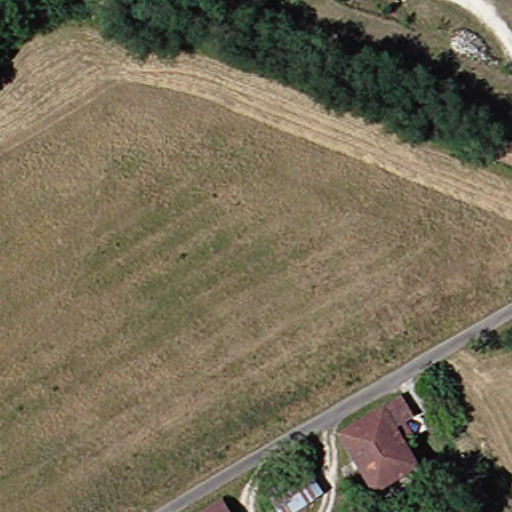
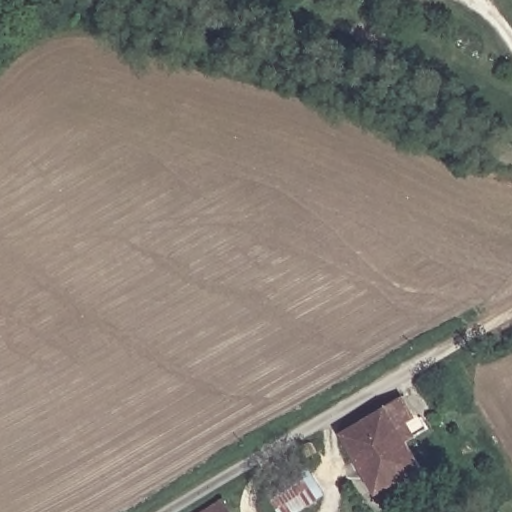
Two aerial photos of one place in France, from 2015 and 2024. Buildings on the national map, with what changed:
unchanged [(409,423),(418,439),(407,447),(418,468),(380,491),(347,435),(402,402),(414,420),(409,423)]
unchanged [(296,512),(289,512),(279,496),(313,472),(326,492),(296,512)]
unchanged [(227,504),(232,512),(213,512),(227,504)]

